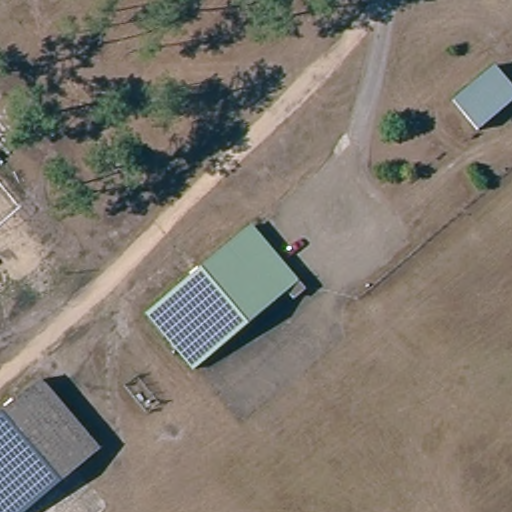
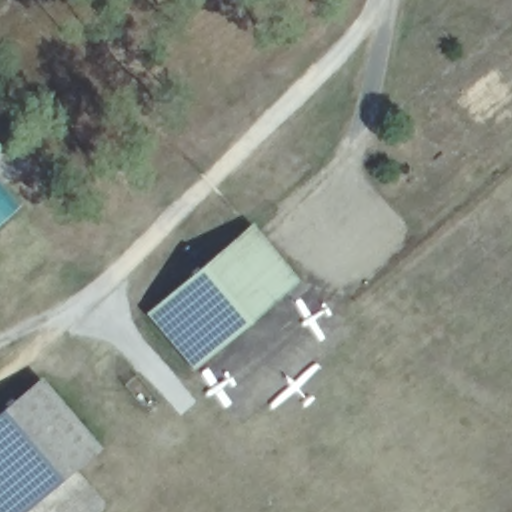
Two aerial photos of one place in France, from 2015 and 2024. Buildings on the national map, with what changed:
demolished [(498,60),(512,78),(512,113),(480,138),(449,99),(498,60)]
new [(0,149),(0,146),(1,148),(0,149)]
new [(0,184),(19,206),(0,223),(0,184)]
unchanged [(255,224),(313,295),(293,312),(282,298),(180,379),(134,322),(255,224)]
unchanged [(101,452),(26,512),(0,512),(0,408),(40,376),(101,452)]

